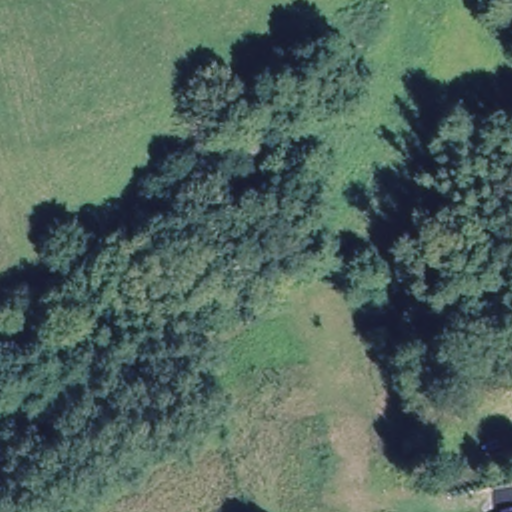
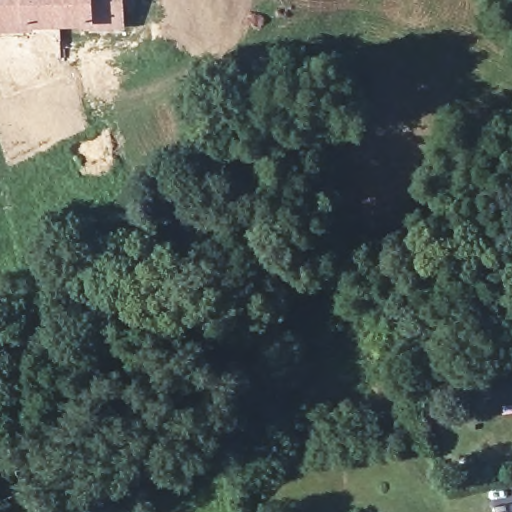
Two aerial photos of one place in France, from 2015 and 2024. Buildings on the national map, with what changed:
new [(124,0),(124,29),(85,31),(85,26),(32,27),(31,32),(0,33),(0,0),(124,0)]

